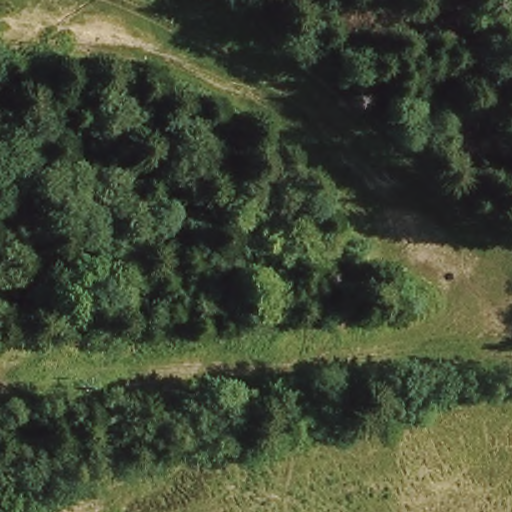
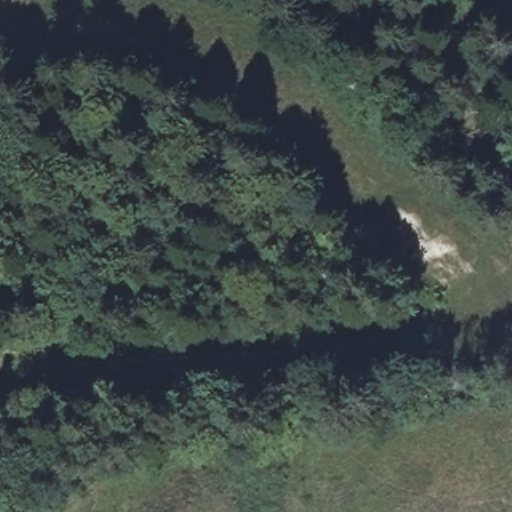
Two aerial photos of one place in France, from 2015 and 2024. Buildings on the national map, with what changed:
[]

